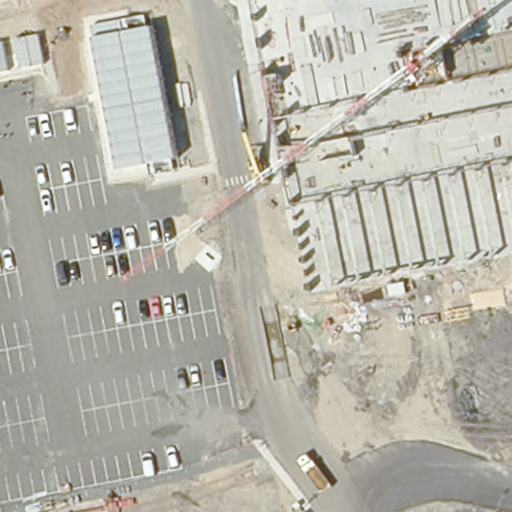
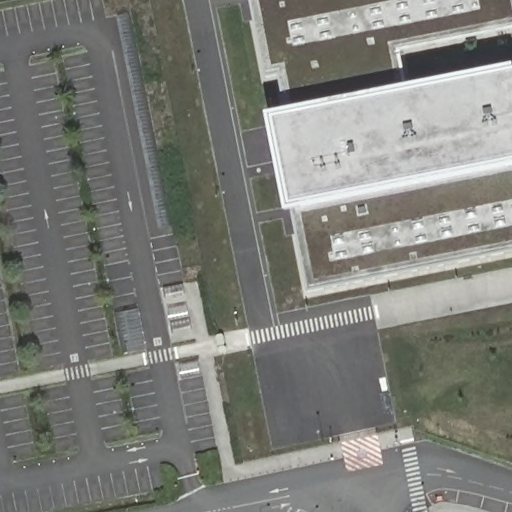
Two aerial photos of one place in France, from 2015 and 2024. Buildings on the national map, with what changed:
new [(512,0),(512,28),(402,51),(408,87),(288,110),(282,74),(268,77),(254,0),(512,0)]
new [(289,212),(270,114),(288,110),(408,87),(512,66),(512,167),(294,211),(289,212)]
new [(512,167),(512,252),(309,292),(294,211),(512,167)]
demolished [(394,257),(445,247),(450,272),(400,282),(394,257)]

